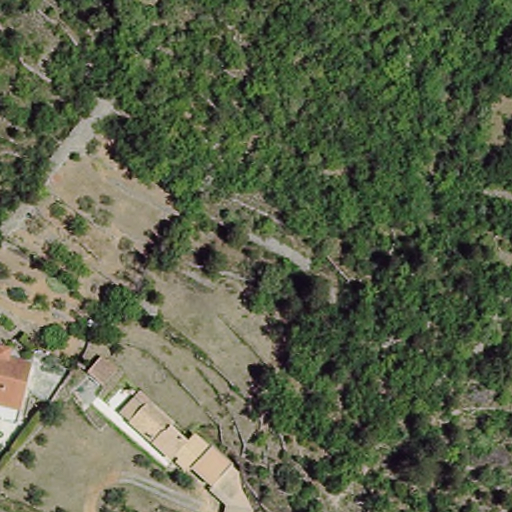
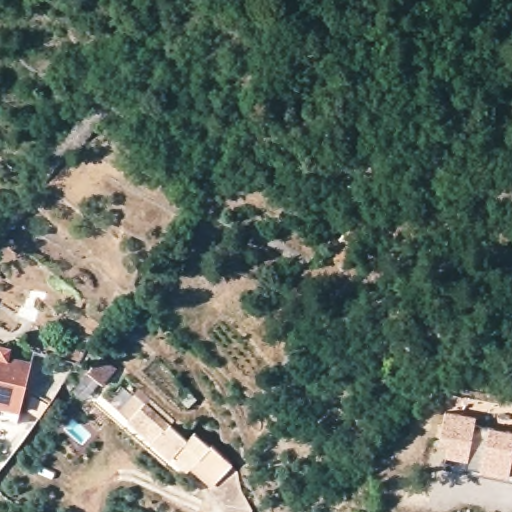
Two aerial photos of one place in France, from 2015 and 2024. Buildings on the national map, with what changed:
unchanged [(12,360),(43,370),(25,427),(0,418),(0,343),(16,349),(12,360)]
unchanged [(105,358),(119,371),(106,388),(90,374),(105,358)]
unchanged [(237,512),(235,504),(213,483),(217,477),(198,463),(194,466),(179,453),(176,455),(155,436),(151,439),(129,418),(117,407),(137,390),(147,399),(187,434),(193,423),(214,442),(216,440),(243,466),(237,473),(248,482),(260,501),(260,512),(237,512)]
new [(476,418),(475,425),(512,432),(512,468),(510,468),(510,475),(482,469),(485,448),(471,445),(469,457),(447,452),(448,445),(440,443),(445,412),(476,418)]

